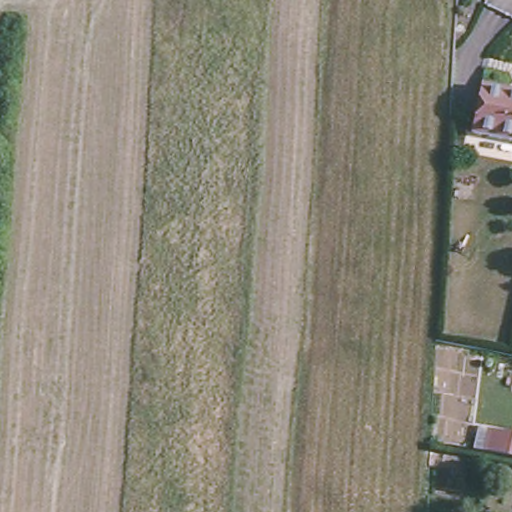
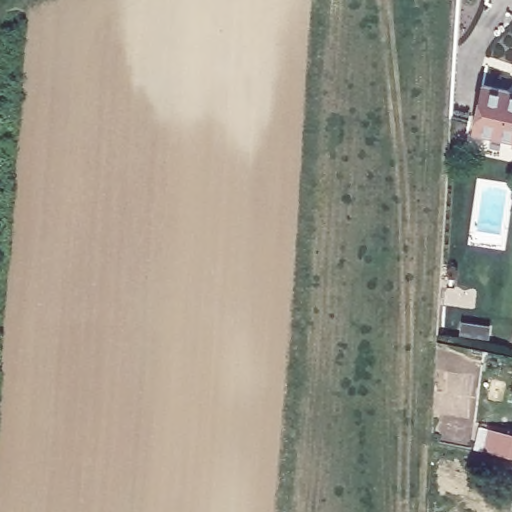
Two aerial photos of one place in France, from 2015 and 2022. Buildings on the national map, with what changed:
unchanged [(505,91),(504,94),(512,95),(512,142),(470,135),(479,86),(505,91)]
unchanged [(512,433),(512,456),(475,448),(479,426),(512,433)]

